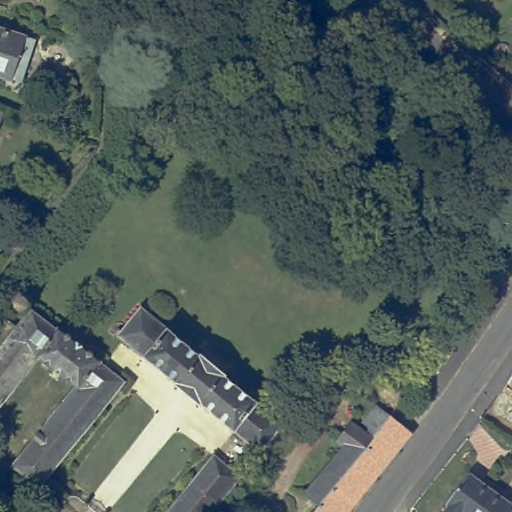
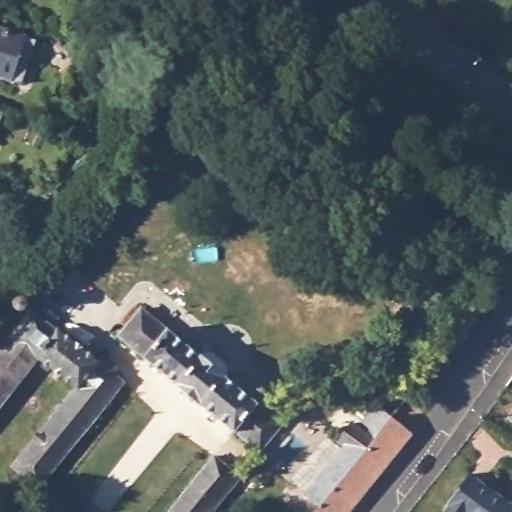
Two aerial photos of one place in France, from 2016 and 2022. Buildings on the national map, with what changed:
unchanged [(27,37),(12,81),(0,77),(0,28),(27,37)]
unchanged [(7,297),(10,293),(12,292),(17,292),(19,292),(22,295),(23,300),(21,302),(20,305),(18,306),(14,307),(10,305),(7,301),(7,297)]
unchanged [(130,292),(190,342),(190,340),(215,361),(214,362),(272,410),(250,437),(191,390),(190,391),(165,370),(166,369),(107,320),(130,292)]
unchanged [(25,305),(91,356),(119,377),(36,479),(33,483),(5,462),(71,381),(34,352),(0,394),(0,336),(25,305)]
unchanged [(375,391),(377,367),(415,377),(397,401),(375,391)]
unchanged [(512,422),(507,418),(512,411),(512,422)]
unchanged [(357,460),(341,447),(335,442),(351,422),(373,440),(390,418),(411,436),(350,512),(315,512),(319,507),(357,460)]
unchanged [(302,494),(341,447),(357,460),(319,507),(302,494)]
unchanged [(168,512),(214,457),(239,477),(211,512),(168,512)]
unchanged [(512,507),(512,512),(443,512),(447,507),(446,506),(467,475),(512,507)]

